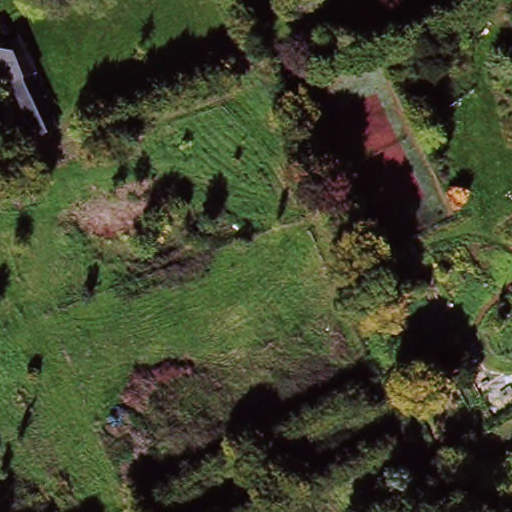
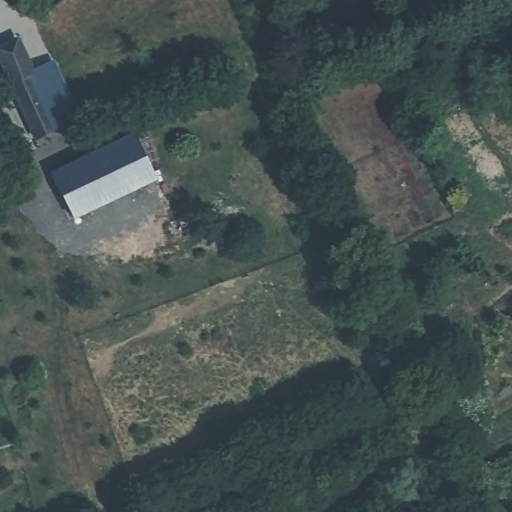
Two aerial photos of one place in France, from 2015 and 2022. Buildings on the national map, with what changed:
unchanged [(30,144),(0,73),(0,53),(20,44),(38,84),(30,88),(51,135),(30,144)]
new [(83,121),(51,135),(30,88),(38,84),(31,70),(54,59),(83,121)]
new [(158,180),(73,221),(49,172),(133,133),(158,180)]

